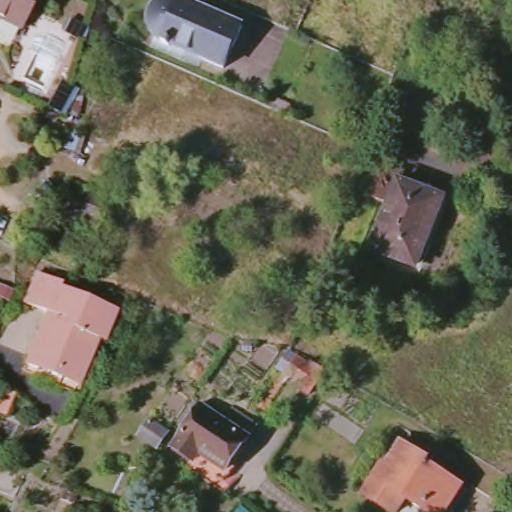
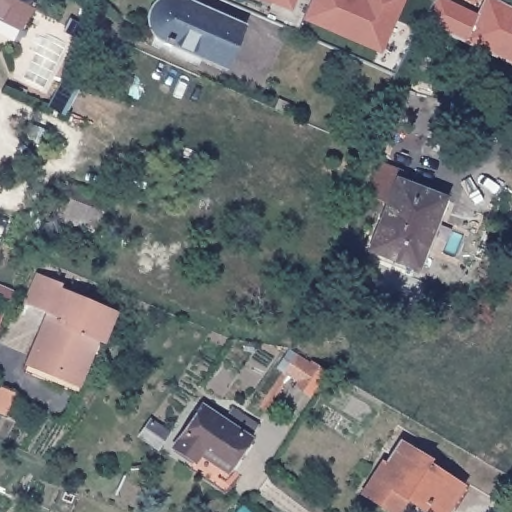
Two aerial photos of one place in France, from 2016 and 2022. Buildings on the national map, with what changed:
unchanged [(21,23),(0,14),(0,0),(33,0),(21,23)]
unchanged [(228,70),(159,38),(156,28),(154,21),(156,14),(159,9),(163,5),(171,2),(179,0),(247,30),(228,70)]
new [(291,12),(262,0),(295,0),(291,12)]
new [(303,20),(311,0),(406,0),(381,54),(303,20)]
new [(433,0),(446,0),(469,11),(465,18),(474,23),(485,0),(497,0),(512,8),(512,65),(423,21),(433,0)]
unchanged [(394,206),(369,196),(382,166),(410,178),(407,188),(446,205),(418,273),(373,254),(394,206)]
unchanged [(110,194),(89,237),(58,224),(73,181),(110,194)]
unchanged [(42,334),(45,335),(54,312),(29,300),(41,271),(66,281),(63,290),(113,312),(100,343),(87,372),(67,363),(63,372),(32,358),(42,334)]
unchanged [(107,346),(94,380),(89,378),(83,391),(27,368),(32,358),(63,372),(67,363),(87,372),(100,343),(107,346)]
unchanged [(229,419),(237,409),(263,424),(256,435),(229,475),(202,458),(196,467),(174,451),(141,437),(151,417),(182,433),(203,401),(229,419)]
unchanged [(393,466),(410,443),(437,461),(435,464),(467,489),(450,512),(422,512),(408,501),(400,512),(391,512),(367,493),(389,463),(393,466)]

